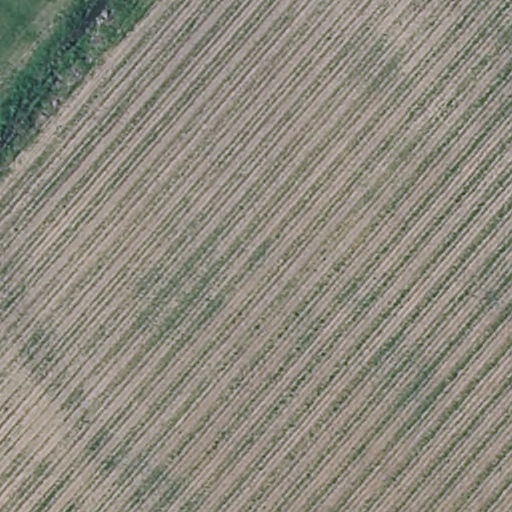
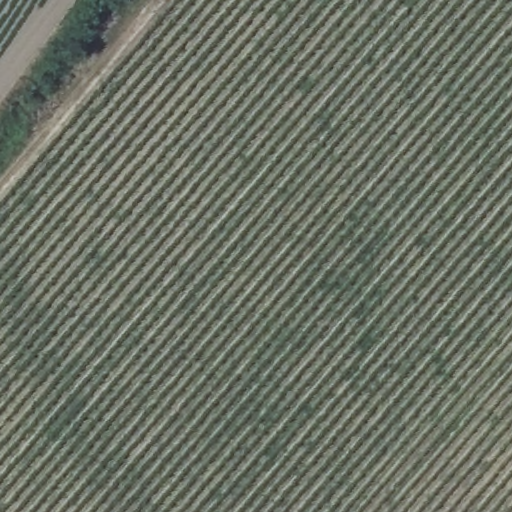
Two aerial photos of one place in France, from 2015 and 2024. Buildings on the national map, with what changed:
[]

